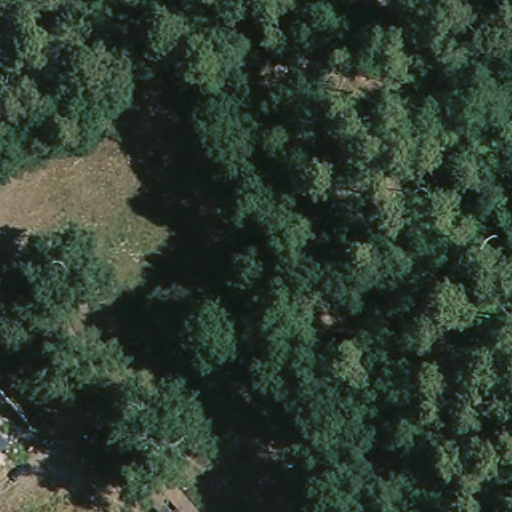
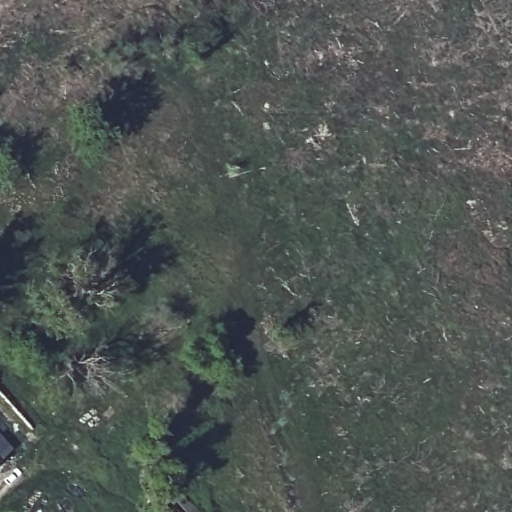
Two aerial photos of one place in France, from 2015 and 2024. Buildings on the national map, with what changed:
unchanged [(25,427),(0,449),(0,398),(25,427)]
unchanged [(184,503),(191,512),(173,512),(184,503)]

